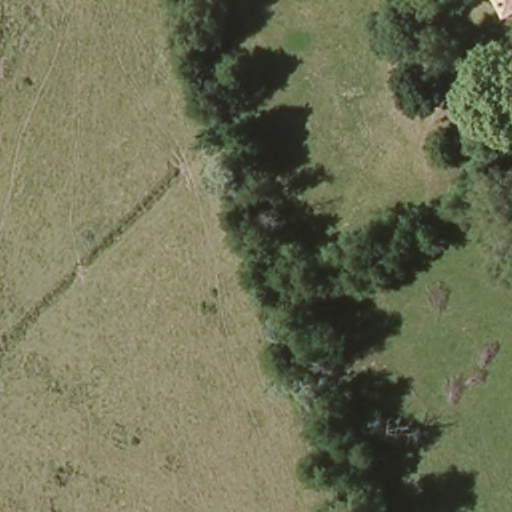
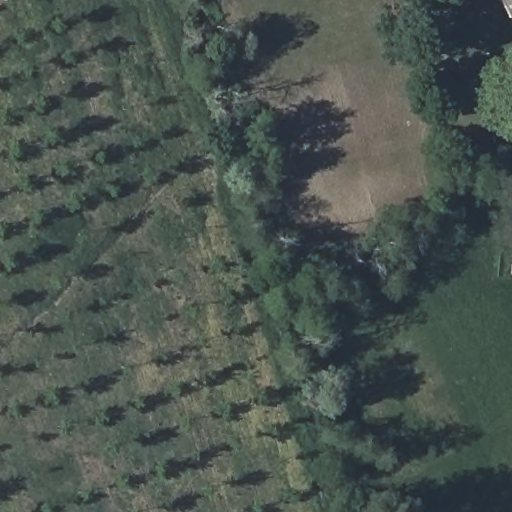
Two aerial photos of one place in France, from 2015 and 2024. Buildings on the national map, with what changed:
unchanged [(512,0),(512,8),(507,0),(512,0)]

